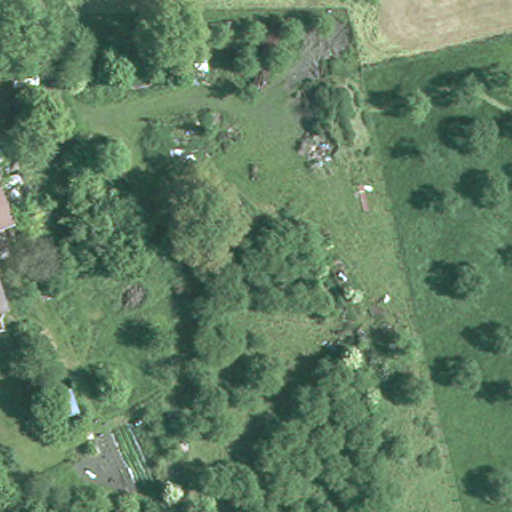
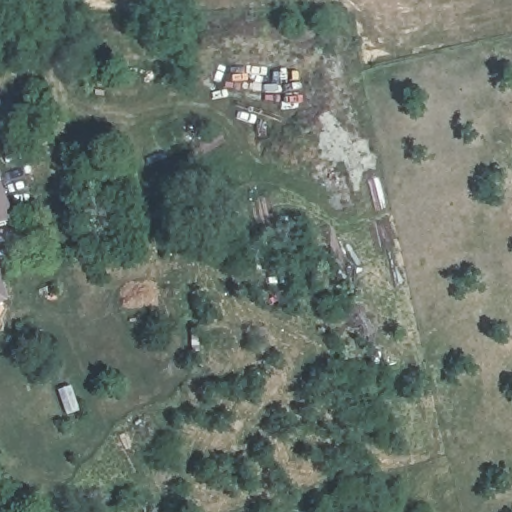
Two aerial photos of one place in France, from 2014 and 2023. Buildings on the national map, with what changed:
unchanged [(0,219),(0,175),(14,214),(0,219)]
unchanged [(175,215),(197,206),(212,243),(191,252),(175,215)]
unchanged [(0,297),(0,281),(5,296),(0,297)]
unchanged [(71,380),(80,405),(67,410),(58,384),(71,380)]

